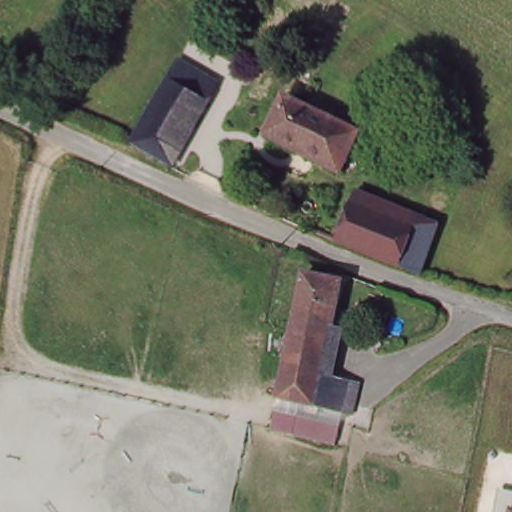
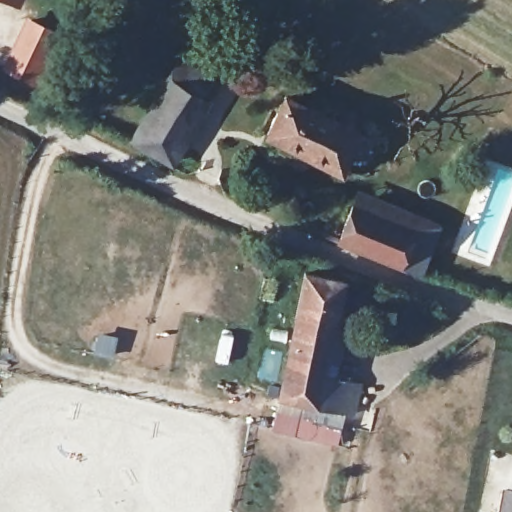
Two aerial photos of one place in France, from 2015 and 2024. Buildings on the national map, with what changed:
new [(22,2),(18,0),(23,0),(22,2)]
new [(59,26),(34,79),(0,62),(0,61),(25,10),(59,26)]
unchanged [(176,66),(214,86),(169,165),(130,145),(176,66)]
unchanged [(368,139),(349,178),(255,130),(278,91),(368,139)]
unchanged [(336,239),(356,198),(418,224),(401,265),(336,239)]
unchanged [(421,217),(439,225),(419,273),(401,265),(418,224),(421,217)]
unchanged [(283,403),(308,277),(342,284),(326,381),(320,410),(283,403)]
unchanged [(361,388),(354,417),(320,410),(326,381),(361,388)]
unchanged [(512,512),(495,512),(499,489),(512,491),(512,512)]

